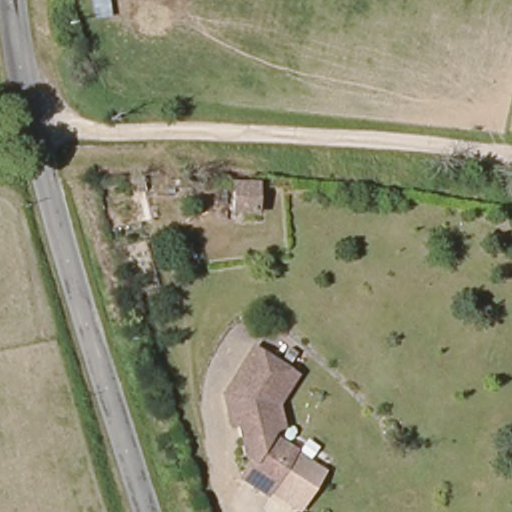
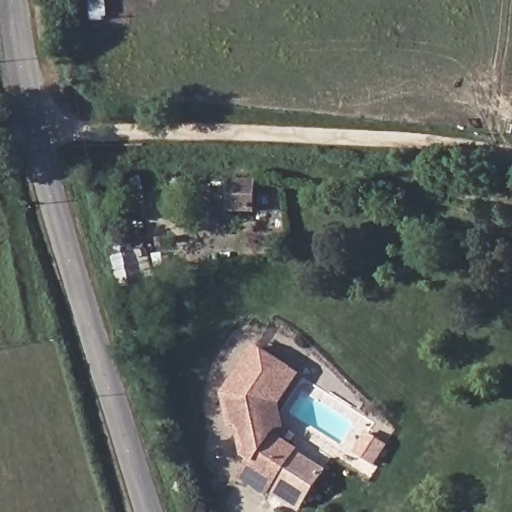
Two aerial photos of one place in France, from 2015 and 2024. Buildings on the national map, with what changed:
unchanged [(250,188),(247,210),(233,208),(237,186),(250,188)]
unchanged [(260,460),(250,455),(244,422),(236,426),(233,413),(228,392),(261,345),(294,370),(300,374),(282,404),(289,426),(279,429),(275,439),(301,454),(273,496),(245,479),(260,460)]

